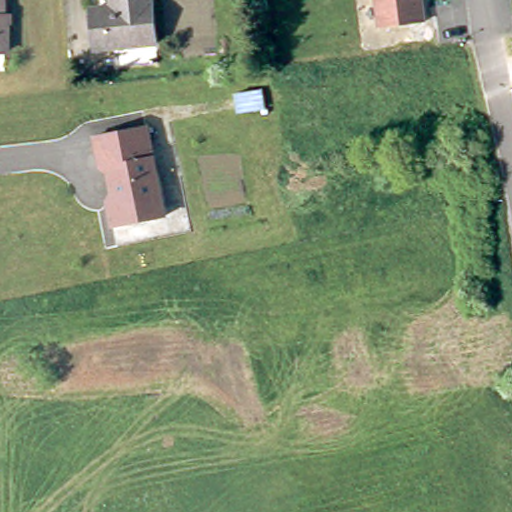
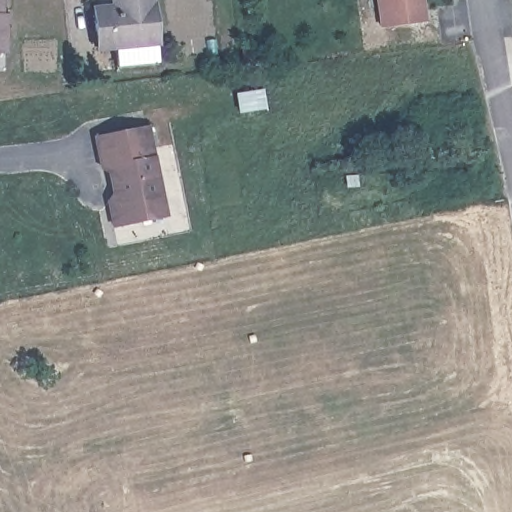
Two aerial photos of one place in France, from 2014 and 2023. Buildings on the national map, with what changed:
unchanged [(5,24),(9,24),(7,53),(0,53),(0,0),(5,0),(5,24)]
unchanged [(117,68),(116,48),(100,48),(98,8),(115,7),(115,0),(156,0),(158,64),(117,68)]
unchanged [(425,24),(382,29),(377,0),(422,0),(425,24)]
unchanged [(255,42),(256,57),(243,57),(242,43),(255,42)]
unchanged [(110,166),(103,167),(97,135),(148,125),(166,214),(115,225),(113,211),(110,198),(115,192),(110,166)]

